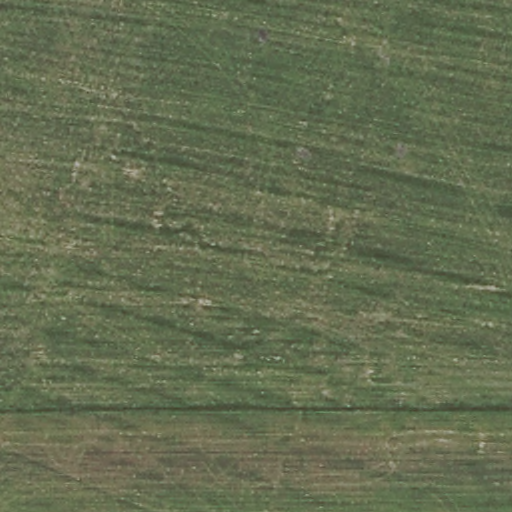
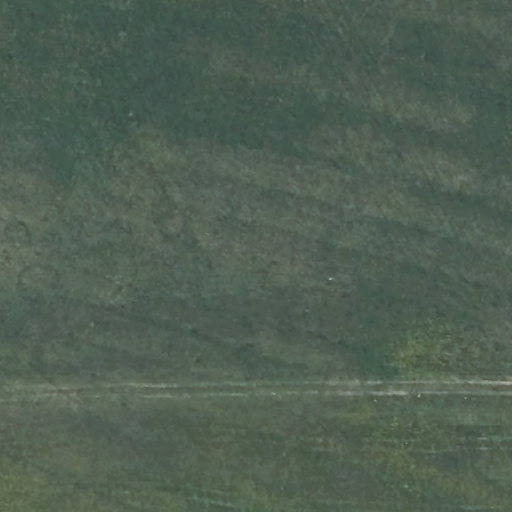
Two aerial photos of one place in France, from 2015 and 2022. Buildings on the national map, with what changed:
[]

